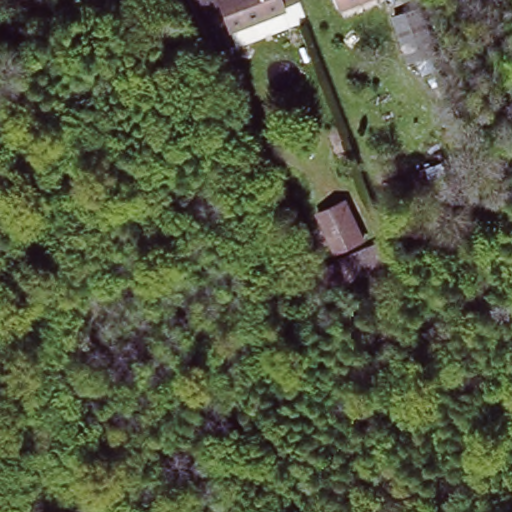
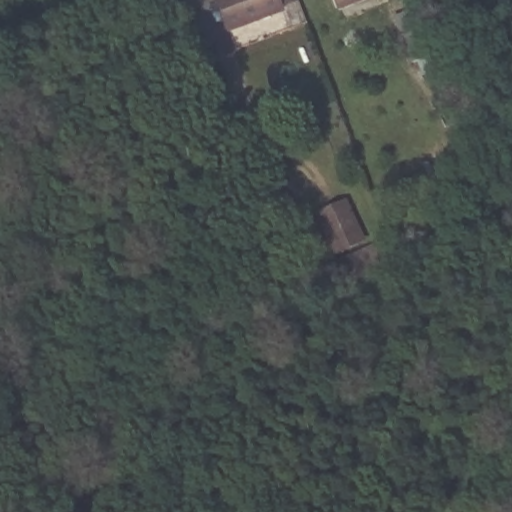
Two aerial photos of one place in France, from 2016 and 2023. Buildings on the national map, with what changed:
unchanged [(281,7),(282,12),(228,31),(218,0),(301,0),(281,7)]
unchanged [(337,3),(335,0),(347,0),(337,3)]
unchanged [(414,0),(429,0),(437,24),(410,33),(400,5),(414,0)]
unchanged [(347,202),(362,241),(334,252),(319,213),(347,202)]
unchanged [(365,246),(385,237),(393,257),(374,265),(328,285),(320,265),(365,246)]

